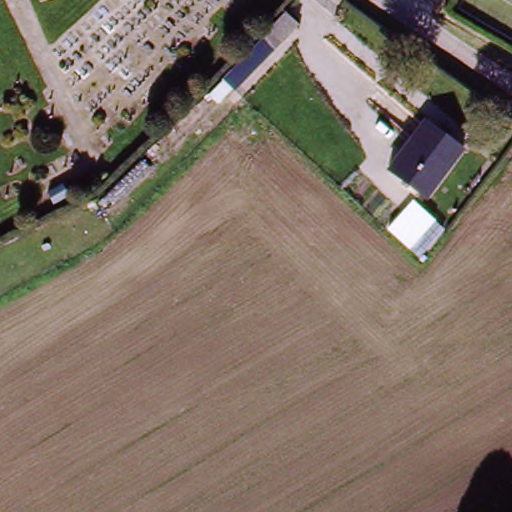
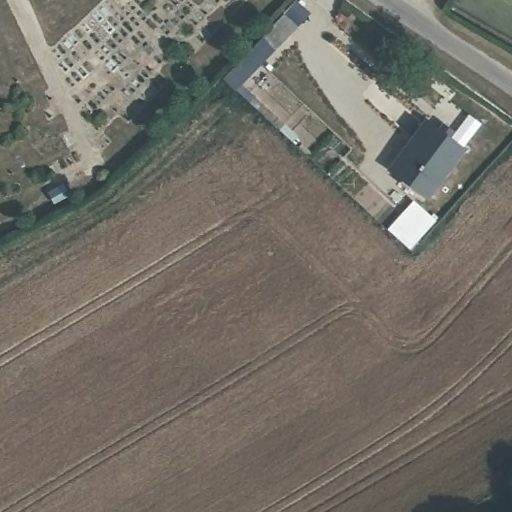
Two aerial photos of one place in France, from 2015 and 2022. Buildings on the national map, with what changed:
unchanged [(268,43),(290,19),(302,30),(280,54),(268,43)]
unchanged [(257,74),(250,81),(240,71),(247,64),(257,74)]
unchanged [(425,201),(388,174),(421,129),(433,138),(440,129),(449,136),(442,145),(458,156),(425,201)]
unchanged [(55,203),(49,194),(60,186),(66,196),(55,203)]

